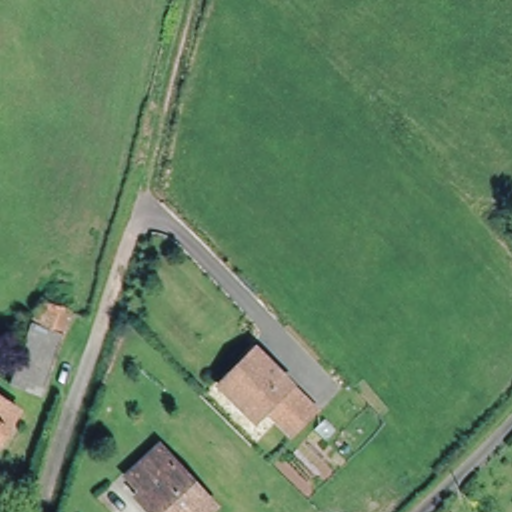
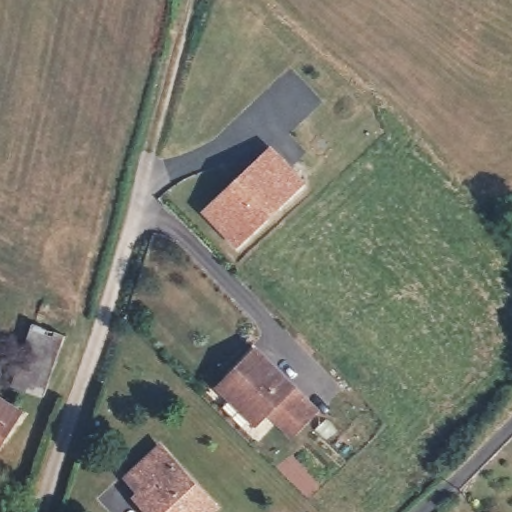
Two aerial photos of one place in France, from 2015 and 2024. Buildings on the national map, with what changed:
new [(305,183),(237,249),(201,212),(270,144),(305,183)]
unchanged [(42,299),(70,309),(43,396),(9,385),(42,299)]
unchanged [(321,408),(295,435),(271,412),(261,423),(227,391),(224,387),(246,363),(260,349),(321,408)]
unchanged [(10,460),(0,453),(0,403),(34,426),(10,460)]
unchanged [(211,502),(202,512),(148,512),(132,497),(137,492),(124,477),(155,447),(211,502)]

